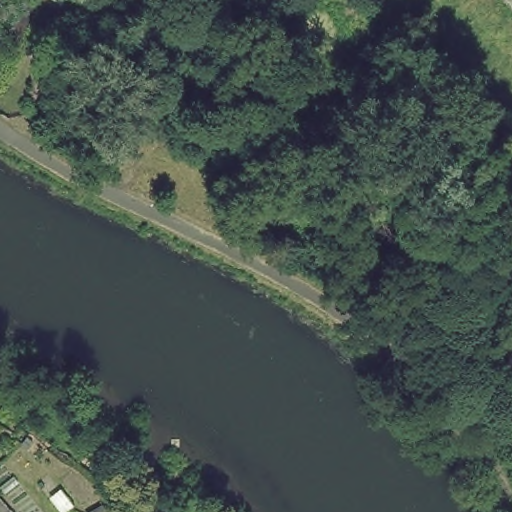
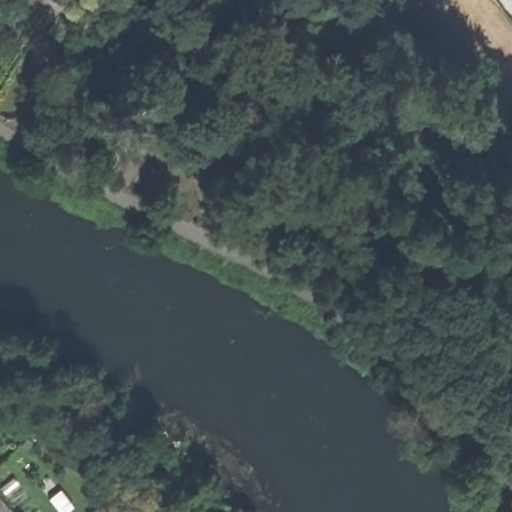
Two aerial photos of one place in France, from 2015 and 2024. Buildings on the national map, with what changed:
demolished [(498,0),(512,0),(512,16),(498,0)]

